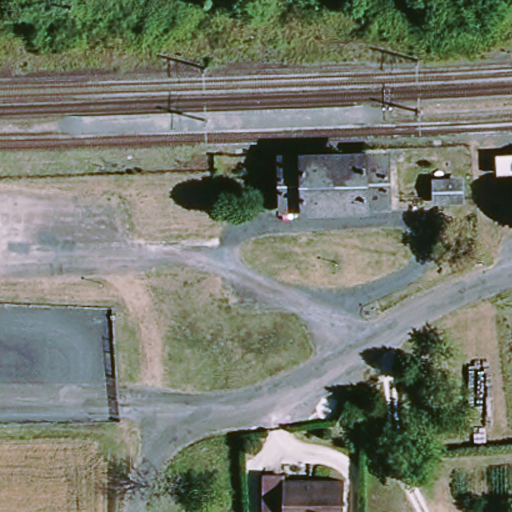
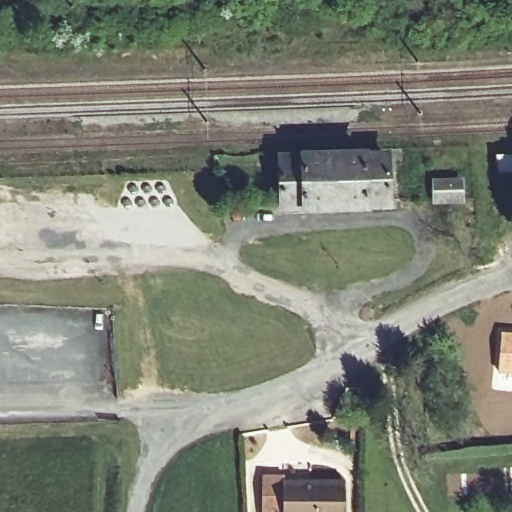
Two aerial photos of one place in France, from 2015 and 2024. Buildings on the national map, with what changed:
unchanged [(288,202),(286,164),(310,163),(309,159),(355,156),(355,159),(387,158),(389,196),(374,197),(374,202),(308,204),(308,202),(288,202)]
unchanged [(497,156),(499,170),(477,173),(474,158),(497,156)]
unchanged [(440,191),(440,174),(455,174),(458,190),(447,190),(440,191)]
new [(500,330),(512,332),(512,373),(497,372),(500,330)]
unchanged [(120,363),(145,361),(147,384),(134,385),(122,385),(121,376),(120,363)]
unchanged [(289,480),(347,478),(348,512),(262,512),(262,477),(288,475),(289,480)]

